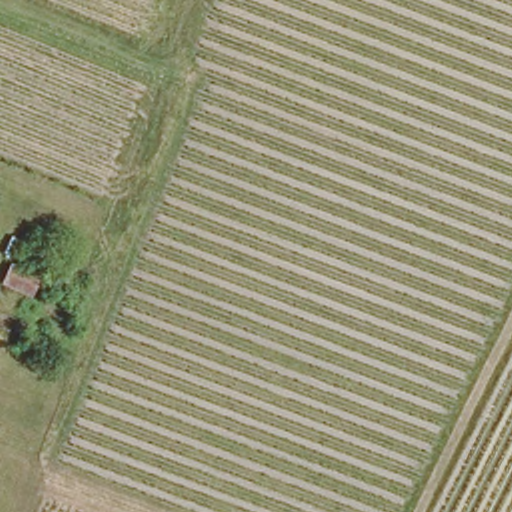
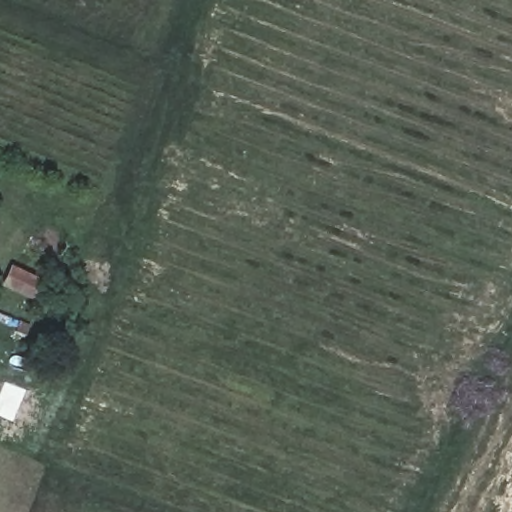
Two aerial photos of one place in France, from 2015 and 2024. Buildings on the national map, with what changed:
unchanged [(33,282),(25,297),(1,287),(9,270),(33,282)]

